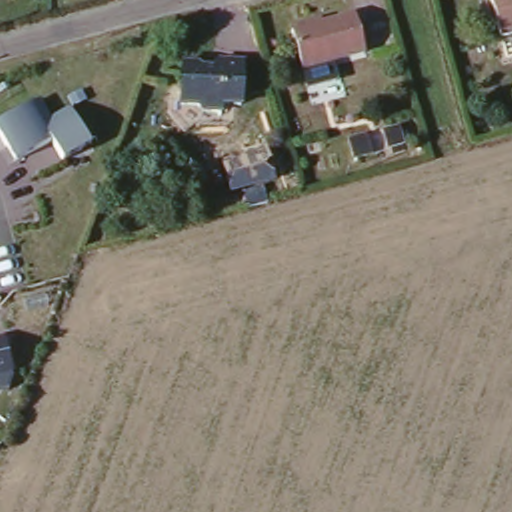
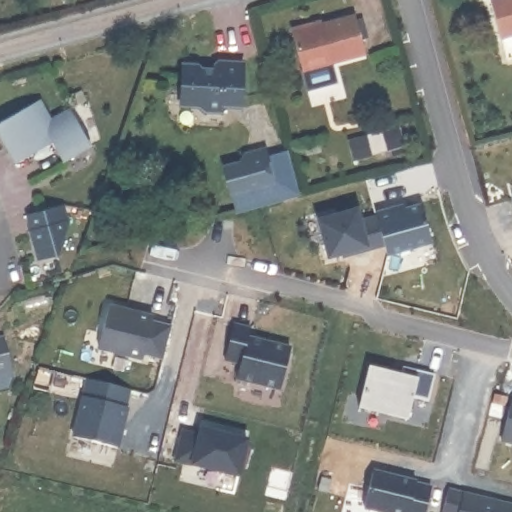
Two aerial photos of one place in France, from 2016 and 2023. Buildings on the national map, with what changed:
unchanged [(506,39),(495,0),(512,0),(512,37),(506,39)]
unchanged [(354,11),(365,53),(303,69),(292,28),(354,11)]
unchanged [(203,59),(203,64),(214,65),(228,54),(247,54),(244,99),(225,99),(224,106),(208,105),(208,98),(185,96),(188,58),(203,59)]
unchanged [(49,116),(69,107),(91,142),(69,157),(50,137),(15,160),(0,132),(0,124),(39,99),(49,116)]
new [(299,194),(236,213),(232,195),(223,164),(242,159),(242,154),(266,148),(268,154),(288,150),(299,194)]
new [(362,215),(404,203),(405,207),(422,202),(433,242),(387,255),(385,244),(342,257),(341,253),(327,257),(317,218),(359,205),(362,215)]
new [(59,207),(66,240),(56,254),(38,260),(26,217),(59,207)]
new [(154,314),(153,320),(172,325),(164,357),(145,352),(143,360),(98,349),(109,303),(154,314)]
new [(242,364),(224,360),(234,323),(252,327),(250,335),(290,346),(281,391),(237,380),(242,364)]
unchanged [(14,369),(9,386),(0,388),(0,334),(6,333),(14,369)]
new [(402,374),(403,366),(435,374),(428,401),(414,398),(408,421),(359,409),(369,367),(402,374)]
new [(132,390),(128,406),(130,407),(119,447),(72,436),(86,379),(132,390)]
new [(512,395),(512,446),(501,443),(512,395)]
new [(199,433),(200,427),(250,439),(239,478),(192,466),(173,462),(182,429),(199,433)]
new [(417,480),(432,484),(425,512),(379,512),(363,509),(373,469),(417,480)]
new [(512,504),(512,512),(442,512),(449,488),(512,504)]

